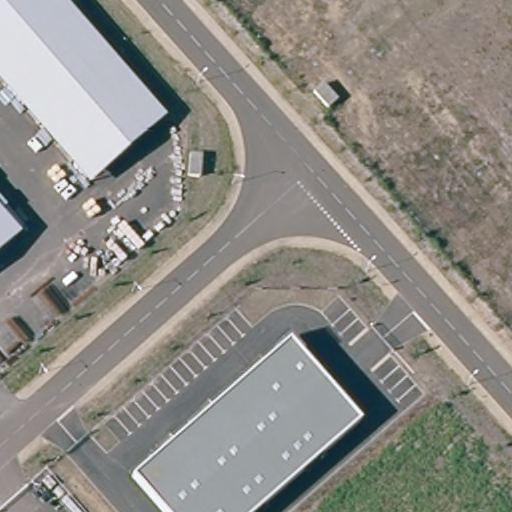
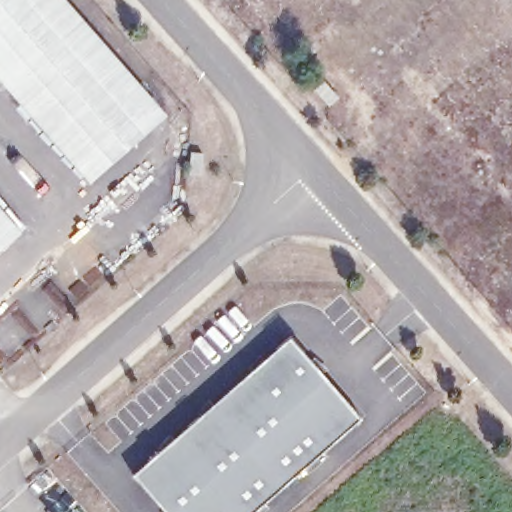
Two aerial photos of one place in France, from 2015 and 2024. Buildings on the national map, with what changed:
unchanged [(166,116),(90,183),(0,80),(0,0),(64,0),(166,116)]
unchanged [(338,99),(328,107),(314,92),(323,84),(338,99)]
unchanged [(200,177),(189,176),(191,154),(202,154),(200,177)]
unchanged [(0,251),(0,208),(21,232),(0,251)]
unchanged [(255,512),(167,512),(134,473),(291,337),(362,418),(255,512)]

